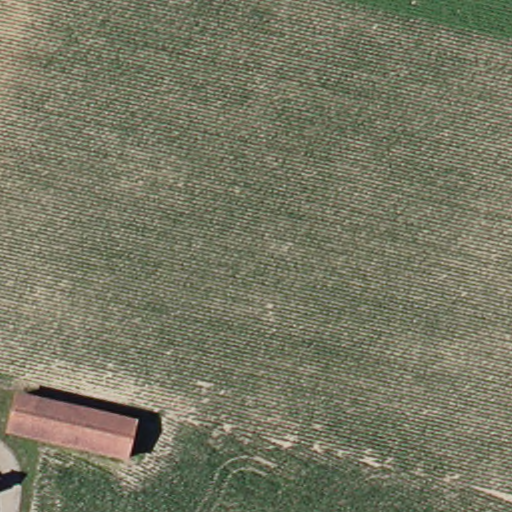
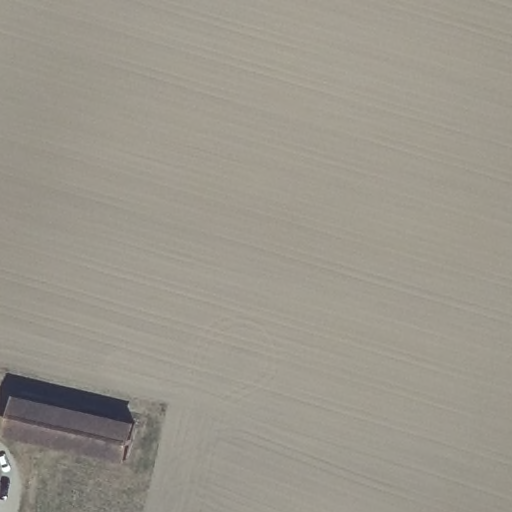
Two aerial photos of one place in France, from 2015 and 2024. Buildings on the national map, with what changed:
unchanged [(1,428),(12,396),(125,429),(115,462),(48,442),(1,428)]

